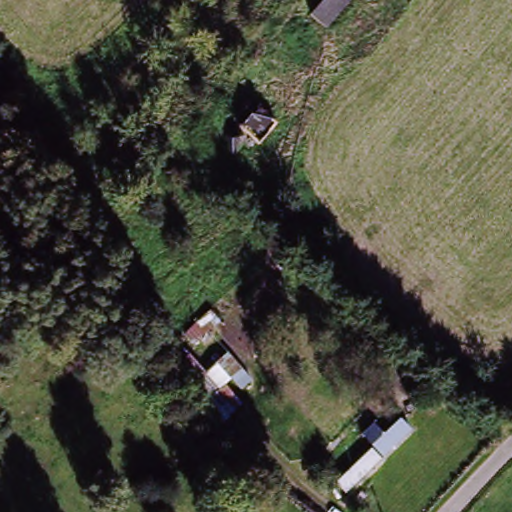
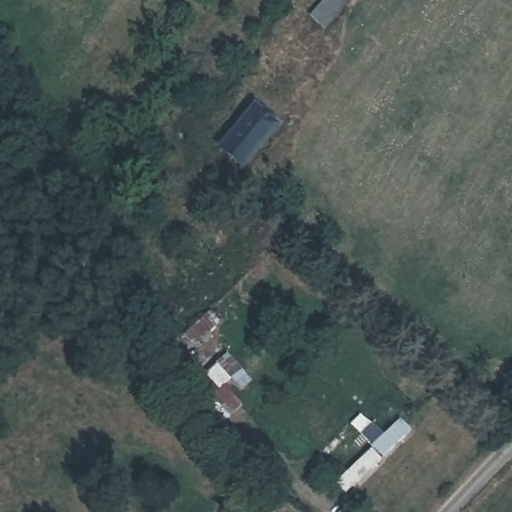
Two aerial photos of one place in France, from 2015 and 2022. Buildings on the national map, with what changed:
unchanged [(321,31),(309,22),(326,0),(347,0),(321,31)]
unchanged [(242,151),(225,138),(254,103),(272,116),(242,151)]
unchanged [(185,349),(207,372),(217,366),(232,385),(244,411),(222,425),(197,397),(173,355),(185,349)]
unchanged [(400,421),(411,433),(345,494),(334,482),(400,421)]

